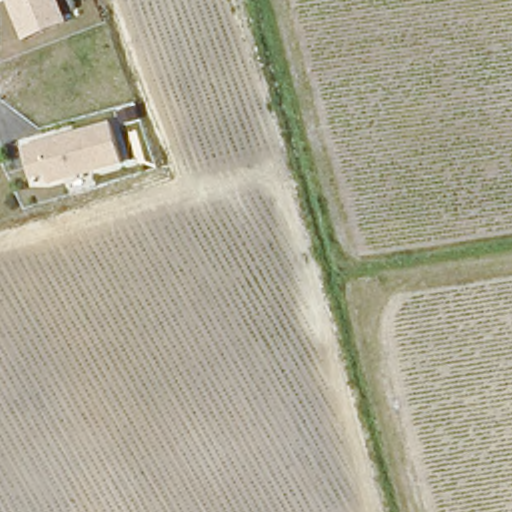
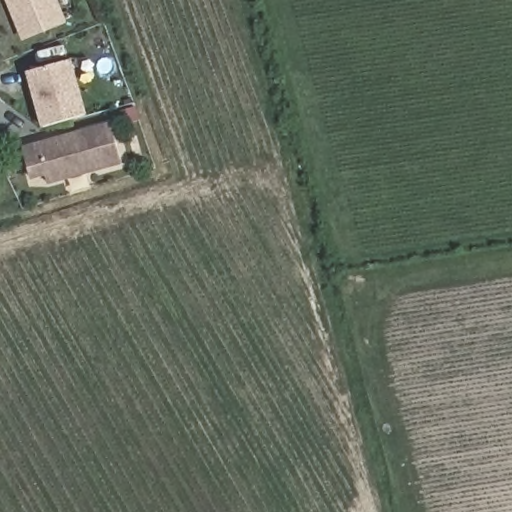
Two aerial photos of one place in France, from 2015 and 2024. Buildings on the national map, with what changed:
unchanged [(23,42),(6,0),(59,0),(70,23),(23,42)]
new [(26,72),(72,59),(88,115),(41,127),(26,72)]
unchanged [(124,166),(49,186),(45,174),(31,178),(21,145),(111,121),(124,166)]
demolished [(386,285),(389,300),(359,305),(356,290),(386,285)]

